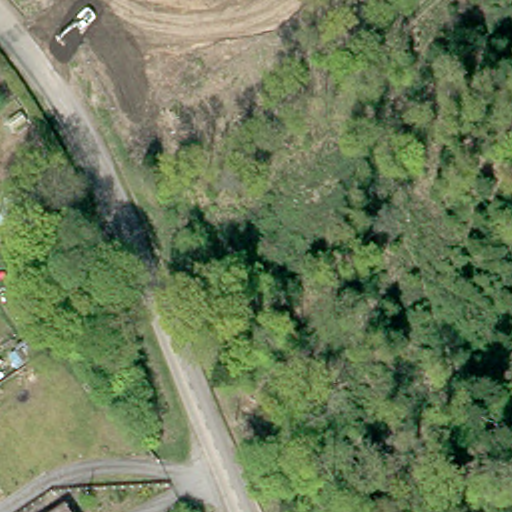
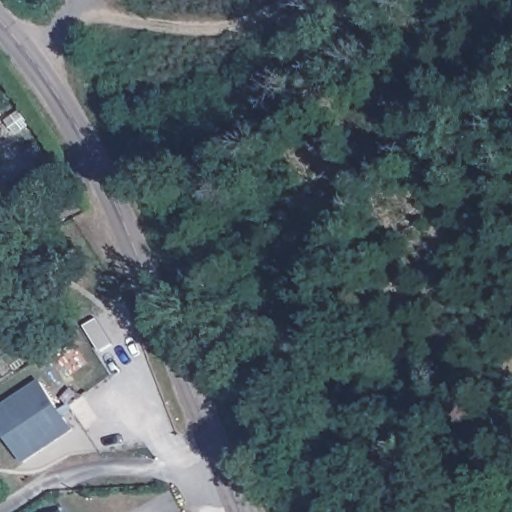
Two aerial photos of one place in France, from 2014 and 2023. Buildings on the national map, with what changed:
new [(74,431),(23,465),(0,429),(0,406),(39,379),(74,431)]
demolished [(73,512),(60,512),(69,506),(73,512)]
new [(68,512),(66,512),(68,511),(68,512)]

